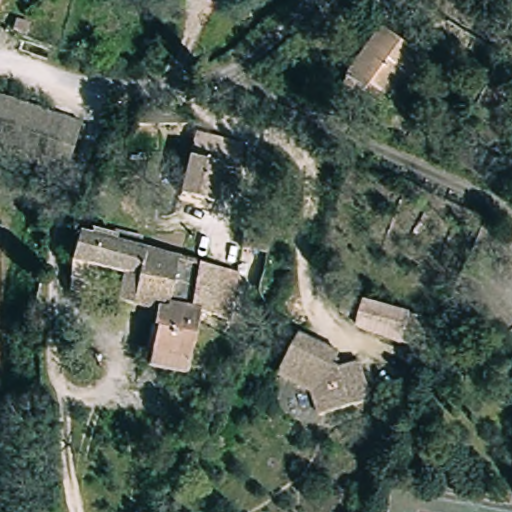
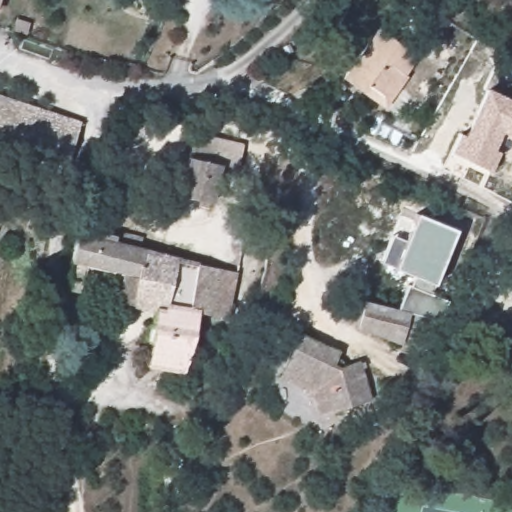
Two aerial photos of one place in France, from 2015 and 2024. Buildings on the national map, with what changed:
unchanged [(408,80),(411,84),(388,115),(343,79),(381,30),(424,60),(408,80)]
new [(464,136),(488,89),(512,100),(512,137),(504,134),(495,151),(501,154),(491,173),(450,154),(460,134),(464,136)]
unchanged [(68,170),(0,150),(0,98),(84,122),(68,170)]
unchanged [(248,145),(243,169),(225,165),(216,201),(184,194),(199,133),(248,145)]
new [(408,286),(411,287),(415,277),(394,269),(380,263),(392,235),(407,240),(417,214),(458,231),(434,286),(432,293),(447,300),(437,320),(399,308),(408,286)]
new [(255,227),(288,236),(282,254),(281,258),(249,248),(250,245),(255,227)]
unchanged [(120,300),(128,266),(89,257),(81,290),(65,285),(80,234),(148,251),(133,303),(120,300)]
unchanged [(158,317),(160,312),(133,303),(148,251),(165,256),(202,266),(203,261),(205,254),(243,266),(242,272),(233,308),(206,300),(198,323),(186,367),(148,357),(155,333),(158,317)]
unchanged [(437,320),(428,340),(399,332),(397,340),(356,327),(359,318),(342,303),(345,293),(437,320)]
unchanged [(346,353),(342,362),(374,368),(366,412),(313,402),(321,384),(283,366),(299,330),(346,353)]

